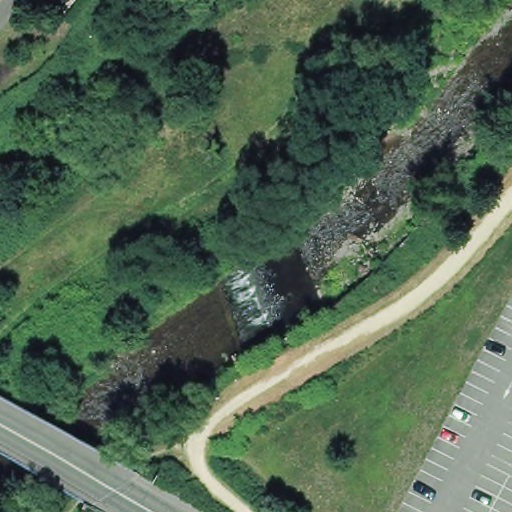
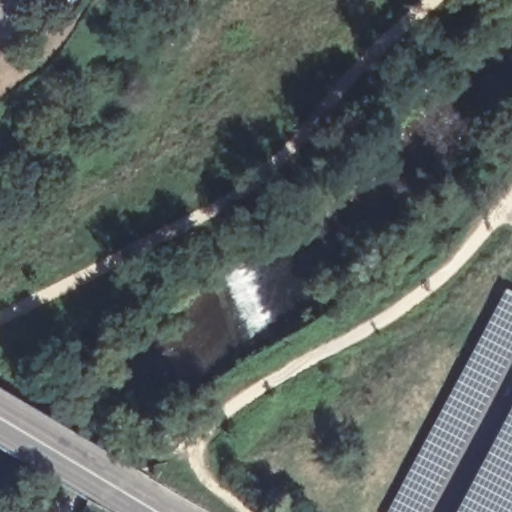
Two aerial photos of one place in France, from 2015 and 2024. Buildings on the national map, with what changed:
new [(388,512),(506,292),(512,295),(512,352),(427,512),(388,512)]
new [(512,512),(458,512),(512,409),(512,512)]

